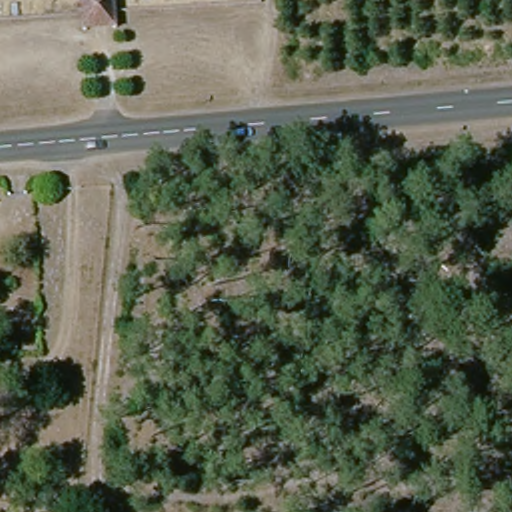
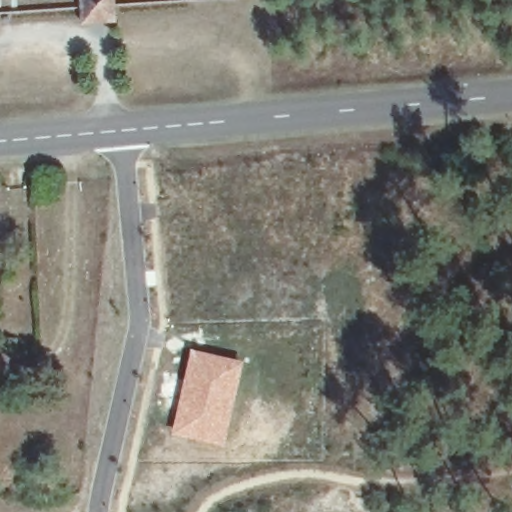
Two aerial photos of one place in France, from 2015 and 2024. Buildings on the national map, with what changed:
unchanged [(81,26),(80,0),(115,0),(116,24),(81,26)]
new [(190,348),(245,361),(226,446),(172,435),(190,348)]

